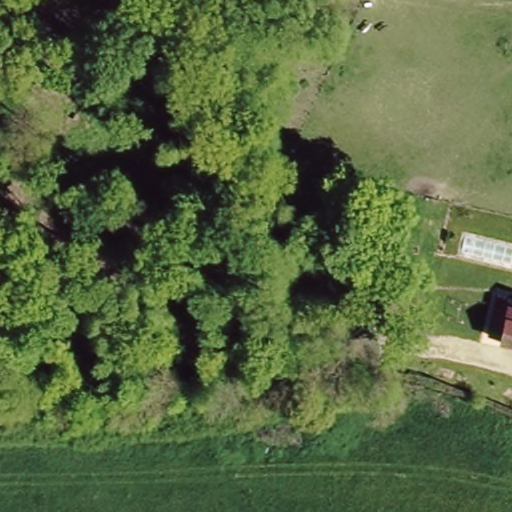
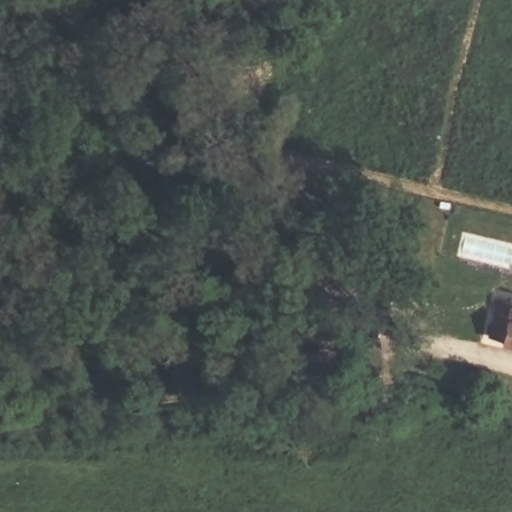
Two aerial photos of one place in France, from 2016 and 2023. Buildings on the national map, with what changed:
unchanged [(512,301),(512,348),(498,344),(509,300),(512,301)]

